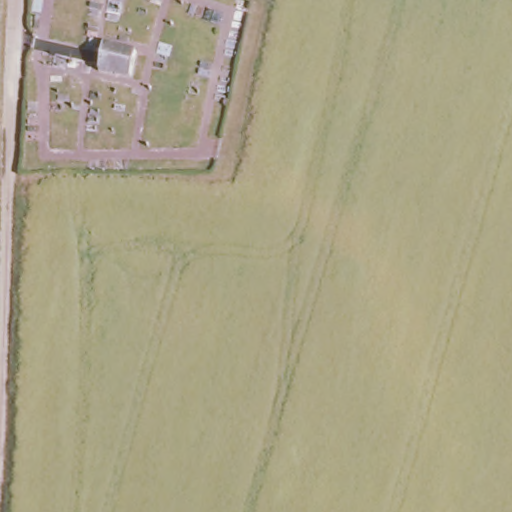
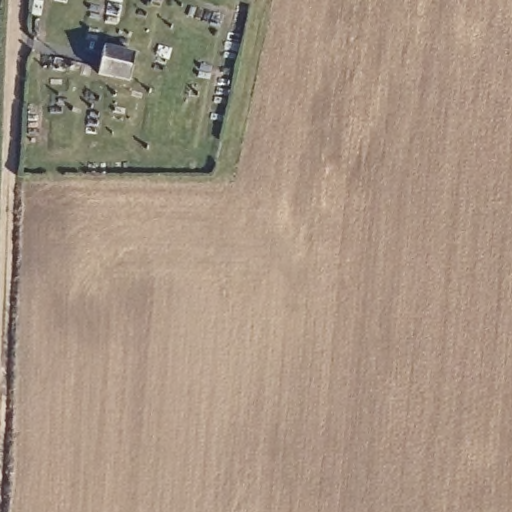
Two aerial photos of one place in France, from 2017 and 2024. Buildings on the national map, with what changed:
unchanged [(130,80),(95,74),(100,45),(135,54),(130,80)]

